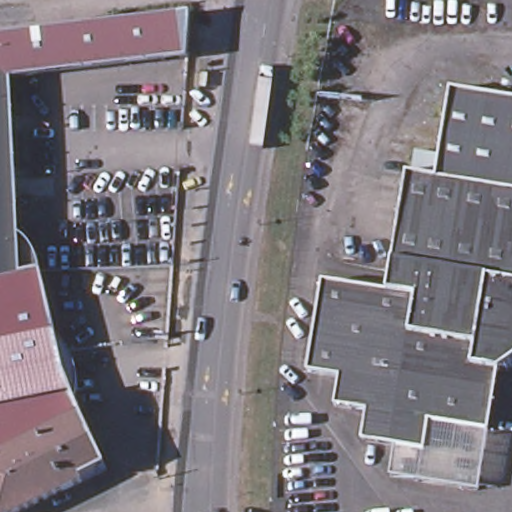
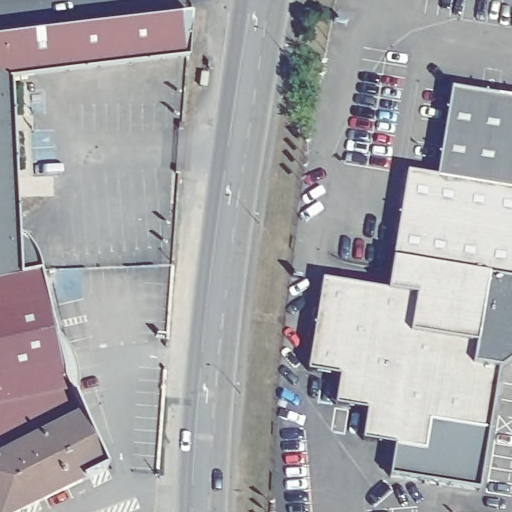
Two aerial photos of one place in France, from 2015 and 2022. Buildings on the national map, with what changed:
unchanged [(184,61),(0,80),(0,39),(188,19),(184,61)]
unchanged [(357,441),(363,411),(331,406),(336,377),(304,372),(319,281),(384,292),(404,174),(433,179),(449,91),(512,102),(512,365),(502,372),(494,371),(484,431),(425,421),(420,451),(392,446),(357,441)]
unchanged [(0,283),(0,134),(5,282),(0,283)]
unchanged [(35,276),(42,307),(0,315),(0,283),(5,282),(35,276)]
unchanged [(59,382),(0,397),(0,315),(42,307),(59,382)]
unchanged [(76,421),(0,458),(0,397),(59,382),(76,421)]
unchanged [(100,472),(18,512),(0,512),(0,458),(76,421),(100,472)]
unchanged [(474,492),(387,478),(392,446),(420,451),(425,421),(484,431),(474,492)]

